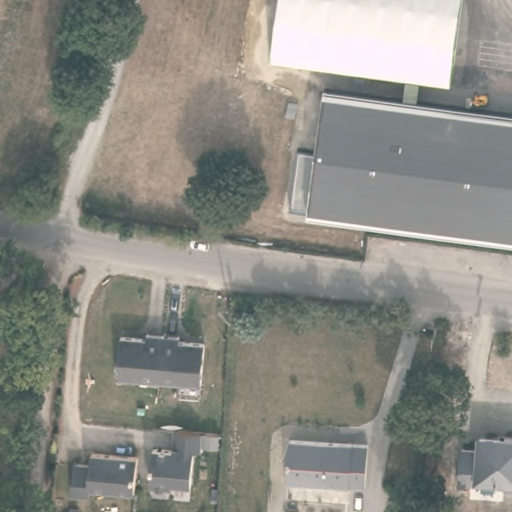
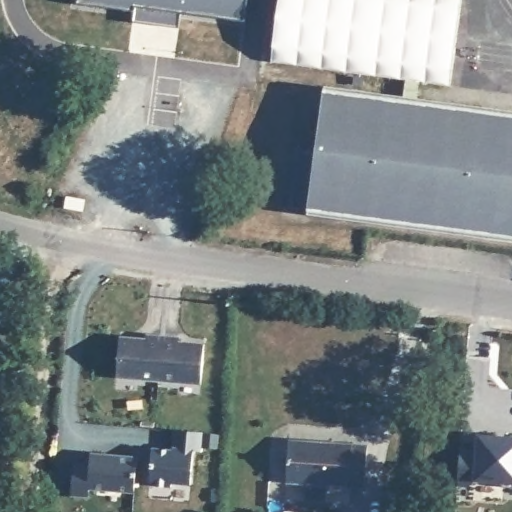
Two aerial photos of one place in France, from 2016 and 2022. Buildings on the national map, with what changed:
new [(245,20),(180,11),(178,28),(132,22),(134,10),(77,3),(77,0),(249,0),(245,20)]
unchanged [(459,5),(459,10),(457,19),(456,39),(454,50),(452,63),(451,73),(450,83),(271,61),(272,59),(273,52),(274,45),(276,36),(278,16),(279,4),(280,0),(461,0),(459,5)]
unchanged [(512,112),(512,239),(308,210),(325,87),(512,112)]
unchanged [(120,335),(144,336),(144,330),(179,331),(180,337),(202,338),(200,379),(119,376),(120,335)]
unchanged [(499,483),(463,479),(464,449),(475,450),(475,435),(512,439),(512,487),(503,487),(499,483)]
unchanged [(290,440),(365,444),(362,486),(288,481),(290,440)]
unchanged [(193,450),(193,451),(191,486),(149,483),(152,446),(193,450)]
unchanged [(134,495),(91,491),(88,499),(70,497),(73,467),(89,468),(90,454),(138,460),(134,495)]

